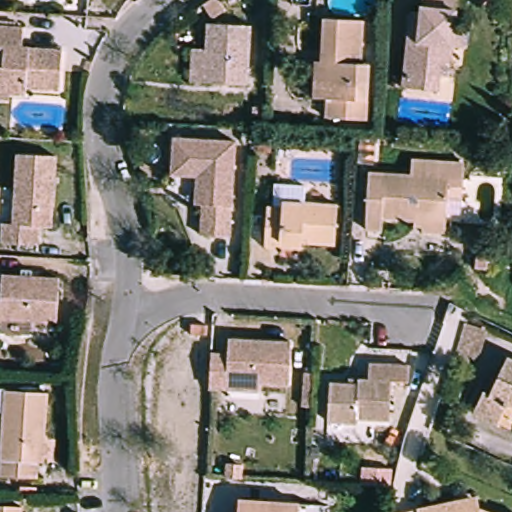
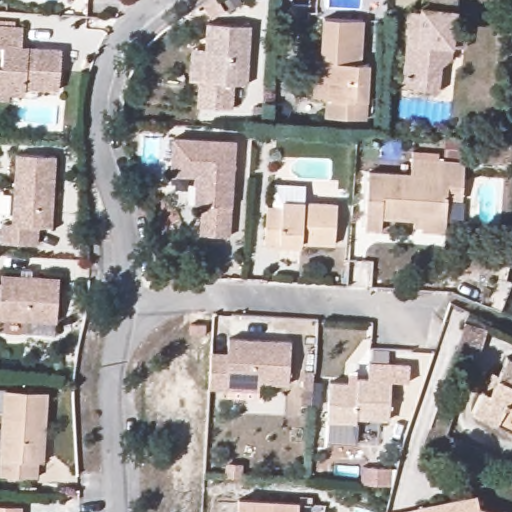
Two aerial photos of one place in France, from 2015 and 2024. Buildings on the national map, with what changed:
unchanged [(217,0),(224,11),(211,19),(202,5),(209,0),(217,0)]
unchanged [(438,91),(402,86),(407,41),(410,11),(420,11),(421,0),(456,0),(454,23),(468,24),(465,47),(452,46),(450,59),(441,66),(438,91)]
unchanged [(319,61),(327,61),(328,53),(330,18),(366,20),(364,64),(372,64),(370,120),(331,117),(331,99),(317,98),(319,61)]
unchanged [(206,23),(250,26),(246,85),(203,83),(190,82),(192,49),(205,50),(206,23)]
unchanged [(3,46),(0,45),(0,27),(23,28),(21,49),(61,51),(58,90),(25,88),(25,94),(9,93),(8,101),(0,100),(0,69),(1,69),(3,46)]
unchanged [(196,178),(171,176),(173,136),(235,141),(229,237),(200,235),(201,205),(195,205),(196,178)]
unchanged [(16,154),(55,156),(51,227),(38,227),(36,245),(0,244),(1,224),(12,224),(16,154)]
unchanged [(421,232),(422,228),(413,227),(414,220),(381,218),(381,230),(365,230),(368,172),(410,175),(411,159),(464,162),(463,184),(462,194),(447,194),(446,215),(445,234),(421,232)]
unchanged [(279,248),(264,247),(266,207),(273,207),(274,185),(305,187),(304,203),(336,205),(334,245),(300,243),(300,249),(279,248)]
unchanged [(488,256),(487,268),(475,267),(475,255),(488,256)]
unchanged [(59,279),(56,322),(0,319),(0,285),(0,276),(59,279)]
unchanged [(464,323),(481,328),(487,329),(476,366),(460,361),(453,359),(464,323)]
unchanged [(206,325),(206,335),(190,334),(190,324),(206,325)]
unchanged [(227,354),(228,339),(291,343),(288,385),(259,383),(259,392),(208,388),(210,353),(227,354)]
unchanged [(477,413),(487,393),(488,391),(494,394),(511,357),(512,357),(512,430),(477,413)]
unchanged [(353,383),(353,378),(373,380),(373,363),(414,365),(413,382),(396,381),(394,420),(361,418),(361,423),(331,422),(334,383),(353,383)]
unchanged [(303,372),(314,373),(311,407),(301,406),(303,372)]
unchanged [(43,462),(38,462),(38,478),(0,476),(0,466),(4,390),(46,393),(43,462)]
unchanged [(481,492),(476,506),(495,512),(393,512),(481,492)]
unchanged [(238,500),(299,504),(298,512),(237,512),(238,500)]
unchanged [(25,512),(0,512),(0,505),(25,507),(25,512)]

